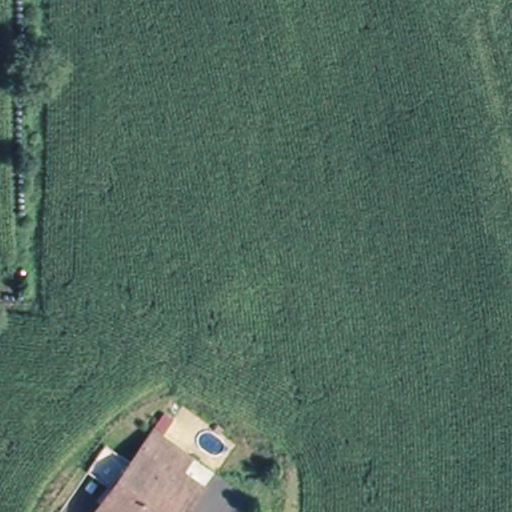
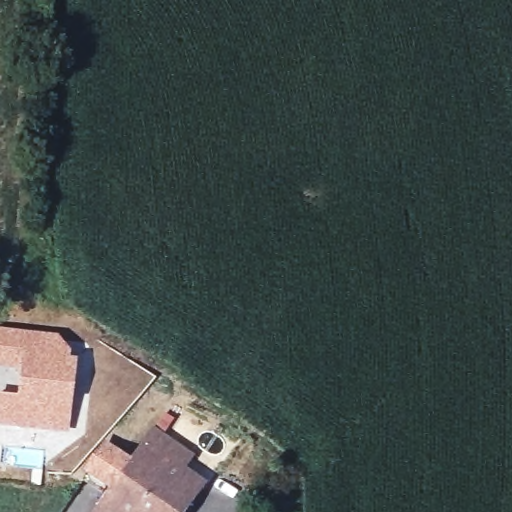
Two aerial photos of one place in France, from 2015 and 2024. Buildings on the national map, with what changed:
new [(18,397),(22,370),(0,368),(0,329),(58,335),(71,353),(70,360),(77,361),(72,406),(68,435),(0,426),(0,395),(18,397)]
unchanged [(93,470),(110,444),(136,461),(150,440),(156,431),(178,445),(202,460),(194,473),(208,482),(189,512),(103,512),(119,487),(93,470)]

